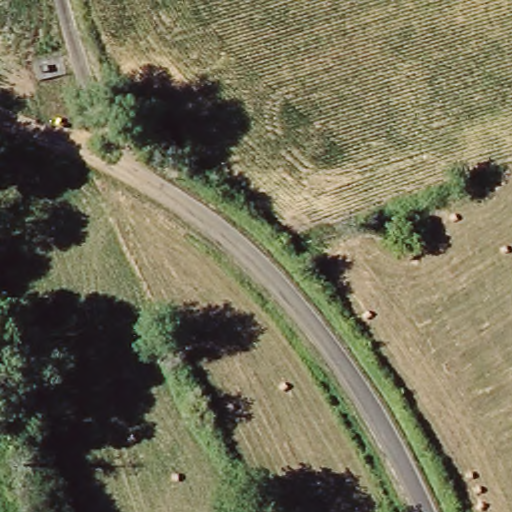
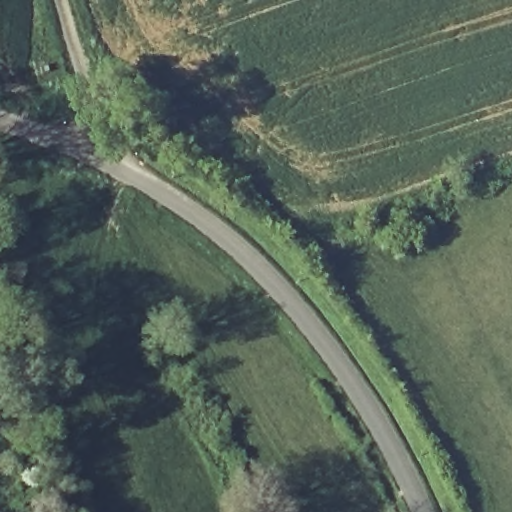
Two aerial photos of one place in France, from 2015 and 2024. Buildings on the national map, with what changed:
[]

